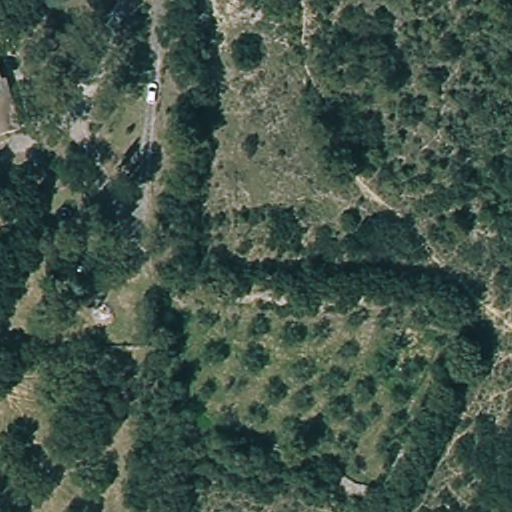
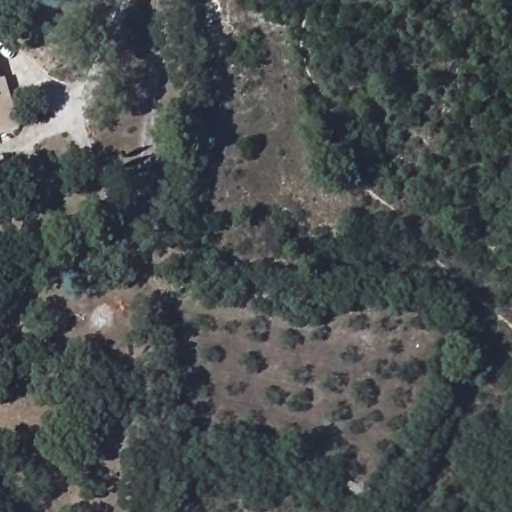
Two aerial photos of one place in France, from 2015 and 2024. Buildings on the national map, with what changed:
unchanged [(2,69),(23,132),(0,139),(0,70),(2,69)]

